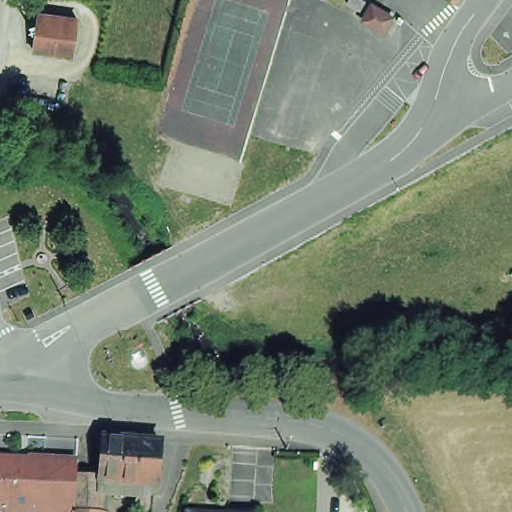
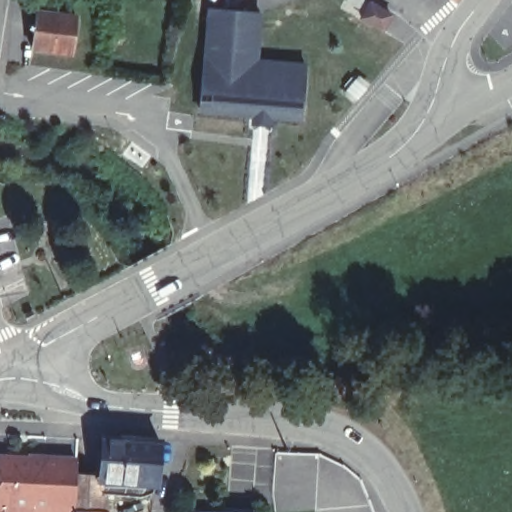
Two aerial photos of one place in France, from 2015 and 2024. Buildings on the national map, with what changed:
unchanged [(357,0),(361,0),(360,2),(357,0)]
unchanged [(385,29),(362,16),(371,0),(375,0),(395,13),(385,29)]
unchanged [(34,5),(74,11),(68,46),(29,41),(34,5)]
new [(263,13),(258,60),(306,64),(301,122),(272,120),(272,128),(250,126),(250,118),(199,114),(207,9),(263,13)]
unchanged [(71,504),(73,504),(75,499),(76,468),(97,470),(101,431),(121,433),(122,426),(140,428),(139,434),(158,436),(156,467),(154,479),(151,487),(137,491),(99,488),(97,507),(103,507),(102,512),(69,512),(71,504)]
unchanged [(2,498),(0,497),(0,451),(30,453),(72,455),(71,504),(68,504),(68,512),(31,512),(32,507),(1,504),(2,498)]
unchanged [(190,503),(218,505),(218,498),(255,501),(255,508),(255,512),(189,512),(190,503)]

